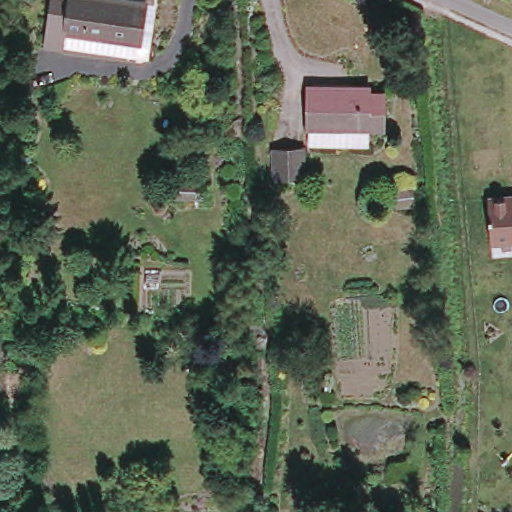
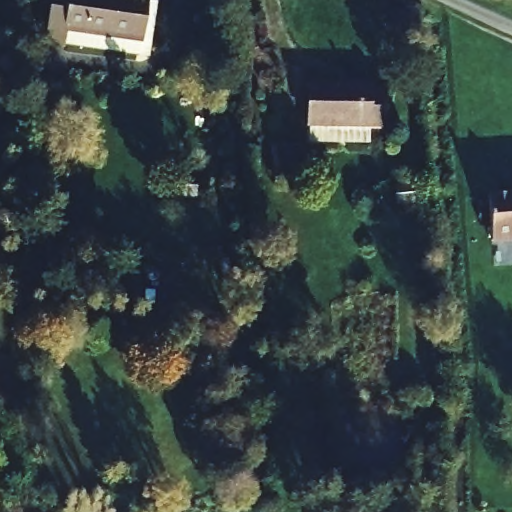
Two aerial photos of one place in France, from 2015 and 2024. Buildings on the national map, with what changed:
unchanged [(136,26),(150,29),(149,40),(60,29),(61,0),(138,0),(136,26)]
unchanged [(315,77),(373,75),(374,80),(389,80),(390,125),(317,127),(315,77)]
unchanged [(310,145),(308,178),(276,177),(277,145),(310,145)]
unchanged [(512,192),(512,240),(492,242),(489,194),(512,192)]

